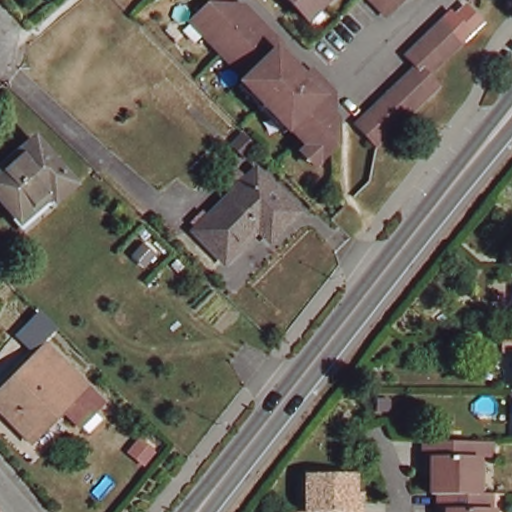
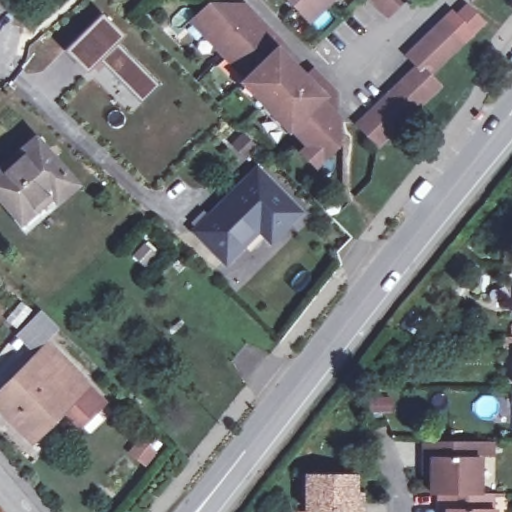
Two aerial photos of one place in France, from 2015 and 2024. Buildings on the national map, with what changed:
unchanged [(302,19),(284,0),(320,0),(319,1),(302,19)]
unchanged [(374,0),(400,0),(387,14),(374,0)]
unchanged [(435,88),(377,147),(357,126),(415,67),(406,57),(448,15),(451,18),(463,6),(481,24),(469,36),(426,78),(435,88)]
new [(100,59),(88,71),(67,50),(103,15),(123,35),(116,42),(158,85),(142,101),(100,59)]
unchanged [(303,161),(308,155),(245,89),(247,86),(192,30),(209,15),(215,15),(236,16),(244,25),(249,22),(280,54),(277,59),(304,87),(313,80),(335,103),(334,117),(330,121),(337,128),(337,154),(322,168),(316,174),(303,161)]
unchanged [(245,157),(231,142),(242,131),(256,146),(245,157)]
unchanged [(55,206),(50,200),(20,226),(0,203),(0,173),(35,144),(73,189),(55,206)]
unchanged [(270,239),(259,228),(225,261),(194,230),(255,169),(298,211),(270,239)]
unchanged [(25,439),(0,413),(0,394),(34,362),(40,357),(46,351),(47,350),(86,391),(101,407),(76,431),(61,415),(45,431),(30,445),(25,439)]
unchanged [(435,447),(481,447),(481,463),(489,464),(488,500),(460,500),(447,499),(441,499),(442,481),(433,482),(434,464),(434,447),(435,447)]
unchanged [(360,512),(314,512),(315,511),(307,511),(307,475),(352,475),(352,493),(360,493),(360,512)]
unchanged [(460,500),(488,500),(495,500),(495,512),(447,512),(447,499),(460,500)]

